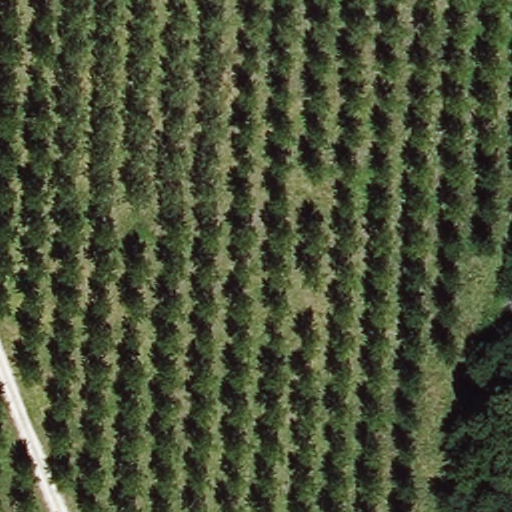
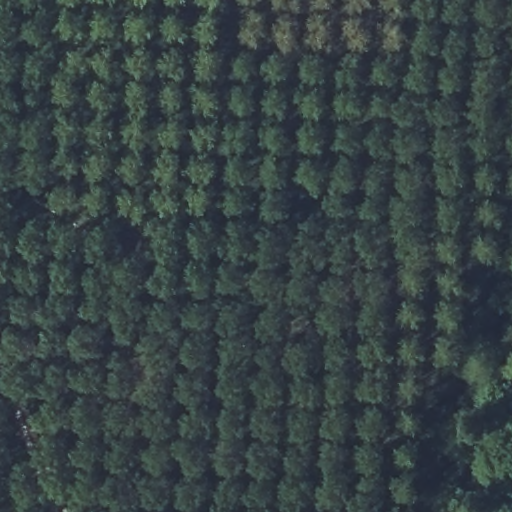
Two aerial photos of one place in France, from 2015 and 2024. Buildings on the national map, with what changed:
[]

